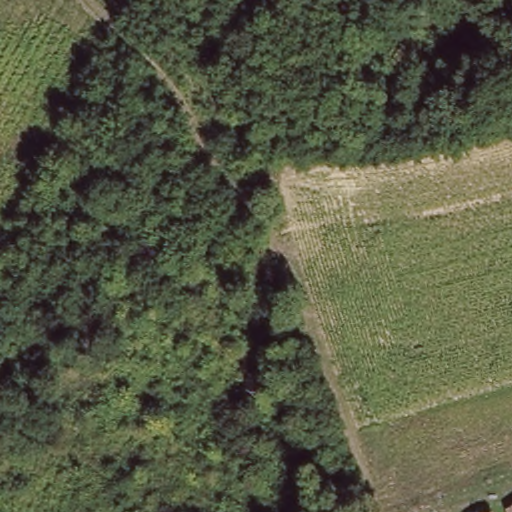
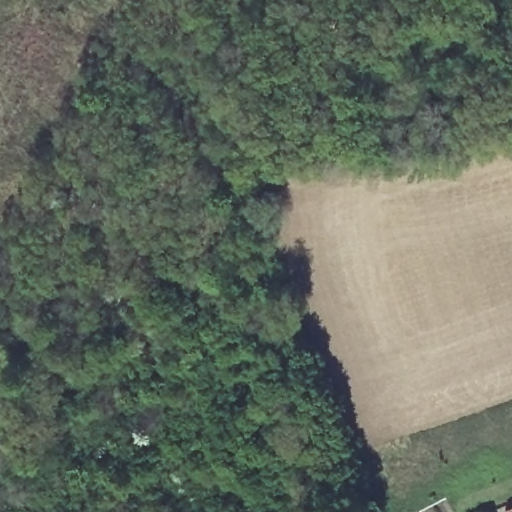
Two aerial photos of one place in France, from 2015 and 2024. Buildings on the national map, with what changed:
unchanged [(512,501),(512,512),(511,512),(507,502),(512,501)]
unchanged [(487,510),(488,512),(483,512),(487,510)]

